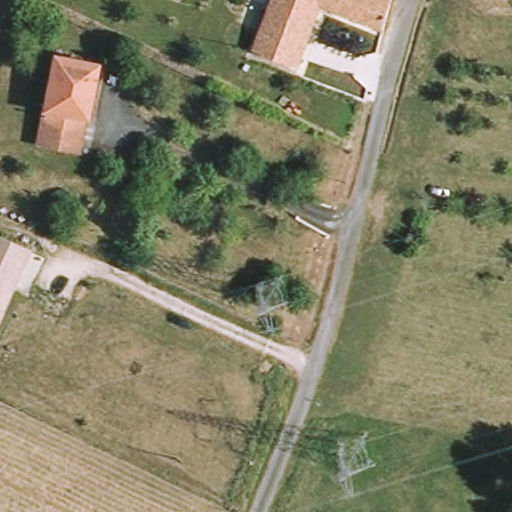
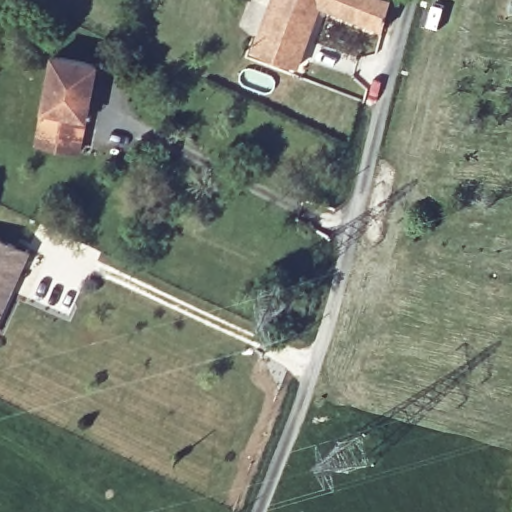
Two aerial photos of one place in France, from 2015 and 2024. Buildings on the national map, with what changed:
unchanged [(388,27),(326,2),(311,42),(271,27),(281,0),(397,0),(388,27)]
unchanged [(263,51),(271,27),(311,42),(302,65),(263,51)]
unchanged [(100,63),(83,150),(41,141),(59,55),(100,63)]
unchanged [(0,319),(0,236),(30,251),(0,319)]

